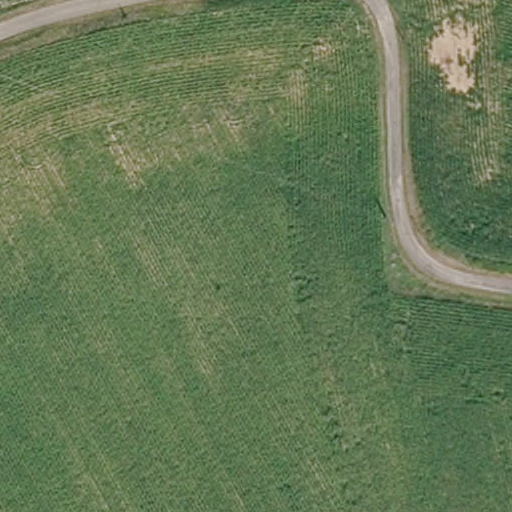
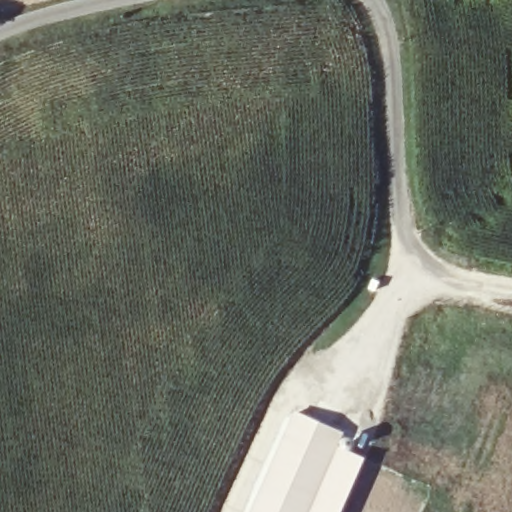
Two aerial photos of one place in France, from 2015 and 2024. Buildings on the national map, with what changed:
new [(344,431),(309,512),(249,512),(295,408),(344,431)]

